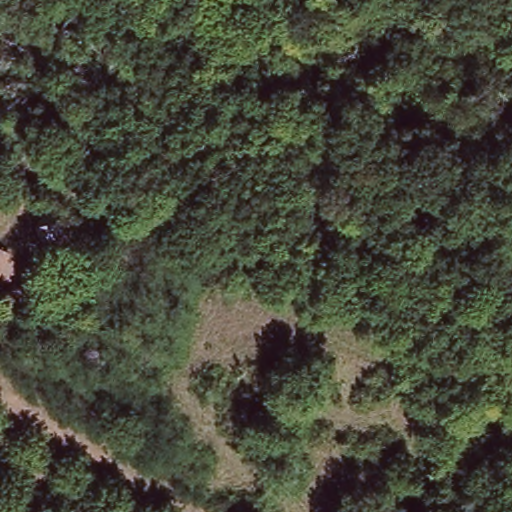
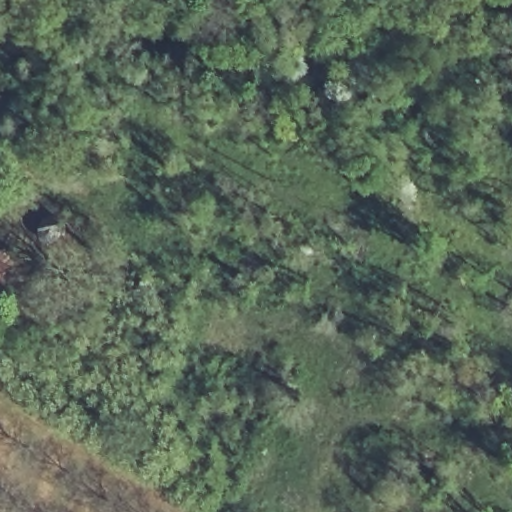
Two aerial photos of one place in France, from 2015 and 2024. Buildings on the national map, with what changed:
unchanged [(42,235),(44,227),(48,221),(63,217),(69,225),(74,236),(70,244),(62,250),(52,249),(44,244),(42,235)]
unchanged [(7,249),(0,265),(0,246),(7,249)]

